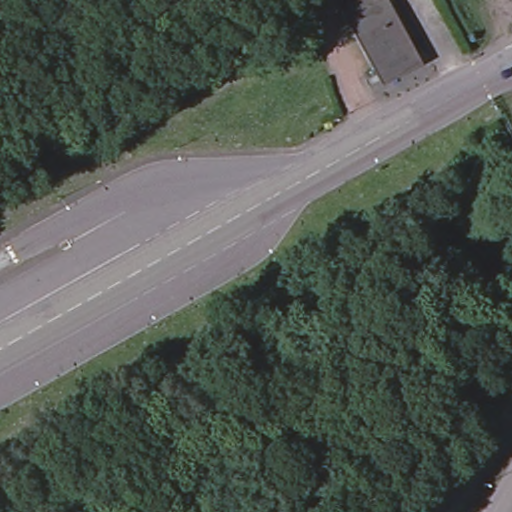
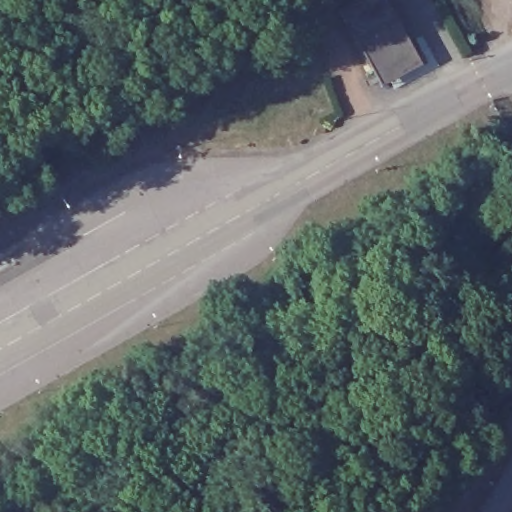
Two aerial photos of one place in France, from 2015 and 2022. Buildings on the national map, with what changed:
unchanged [(344,10),(363,0),(395,0),(428,60),(384,82),(344,10)]

